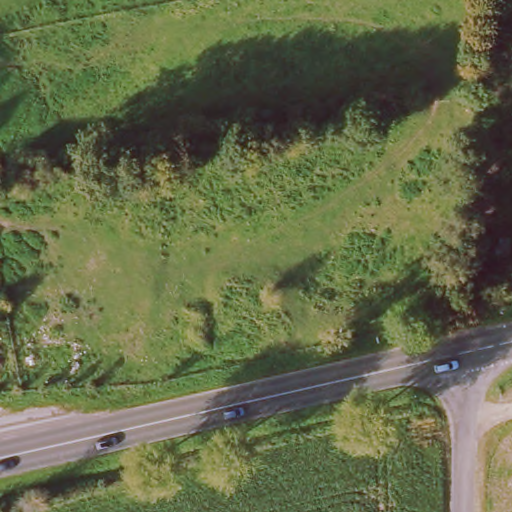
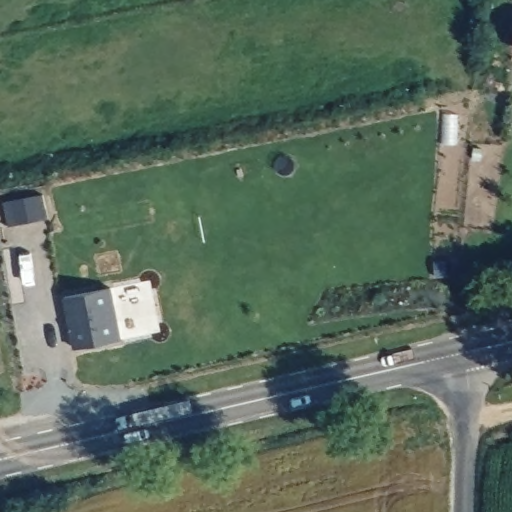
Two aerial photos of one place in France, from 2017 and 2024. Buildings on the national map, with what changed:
new [(7,202),(44,195),(48,218),(12,225),(7,202)]
new [(122,339),(75,349),(63,297),(112,286),(122,339)]

